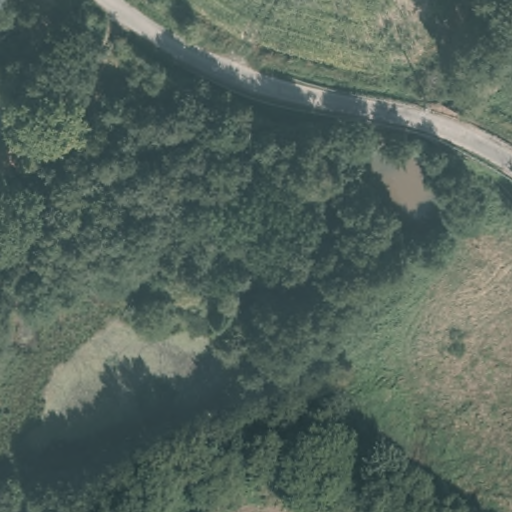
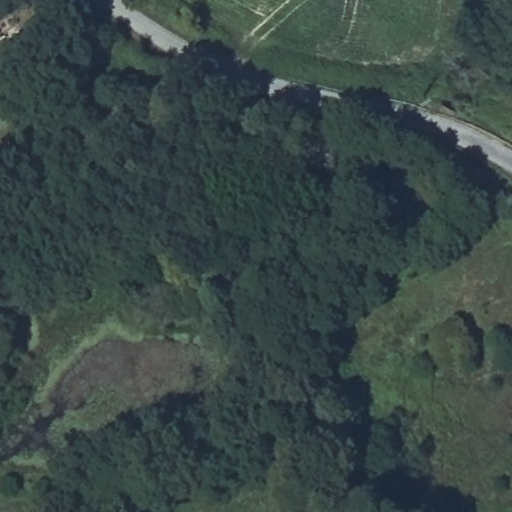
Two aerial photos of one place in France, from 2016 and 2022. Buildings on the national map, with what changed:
unchanged [(307,153),(295,147),(301,138),(312,144),(307,153)]

